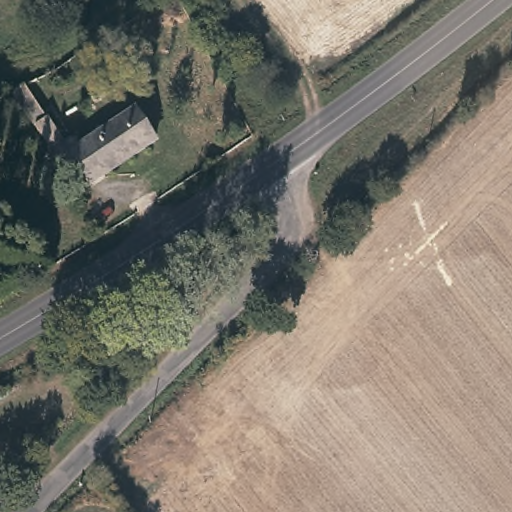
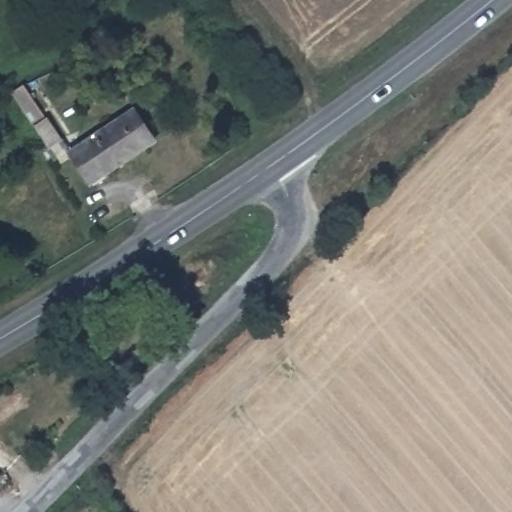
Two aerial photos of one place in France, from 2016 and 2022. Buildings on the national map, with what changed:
unchanged [(45,104),(29,114),(10,82),(28,76),(45,104)]
unchanged [(62,132),(45,142),(30,117),(49,107),(62,132)]
unchanged [(156,142),(94,180),(75,149),(139,110),(156,142)]

